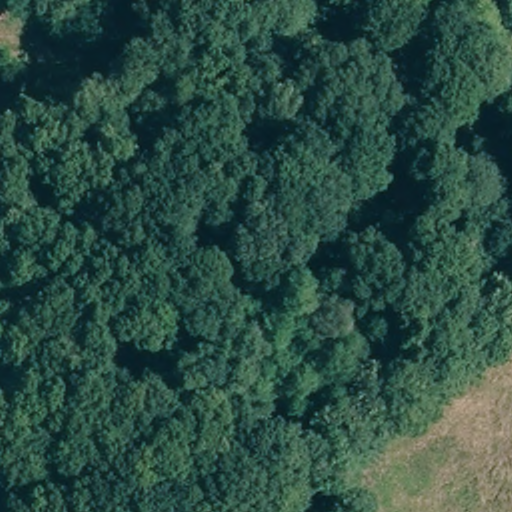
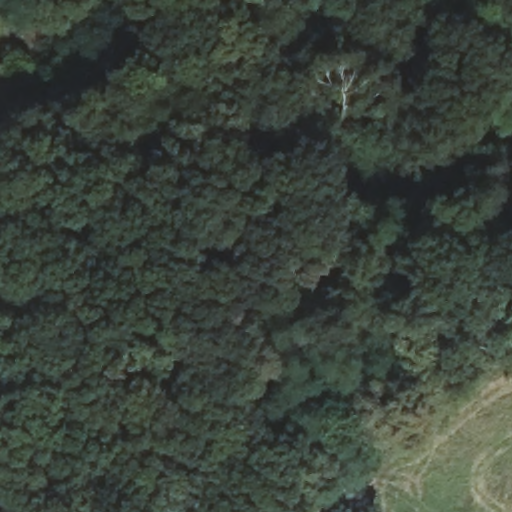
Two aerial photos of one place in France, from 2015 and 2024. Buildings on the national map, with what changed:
unchanged [(0,122),(7,124),(0,156),(0,122)]

